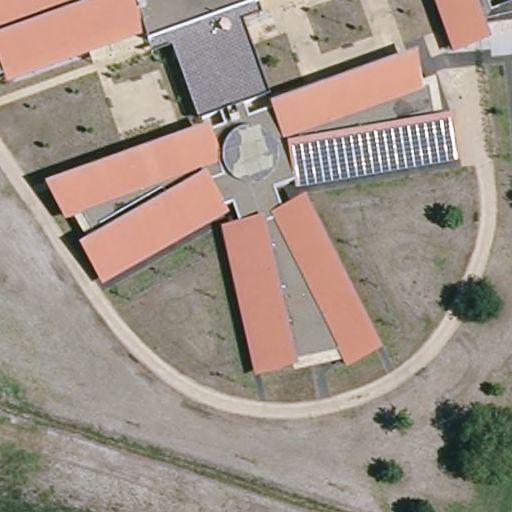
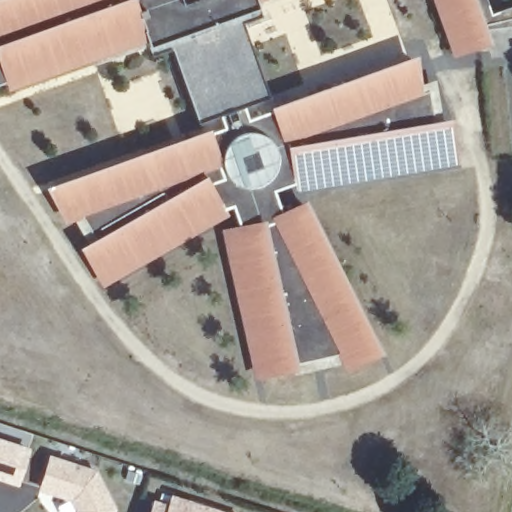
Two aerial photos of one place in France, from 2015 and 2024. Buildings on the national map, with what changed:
unchanged [(0,82),(0,0),(255,0),(257,5),(260,15),(241,24),(268,95),(241,104),(248,120),(270,111),(411,59),(420,82),(435,77),(442,120),(450,119),(457,166),(298,189),(296,183),(274,192),(280,210),(302,197),(381,352),(344,372),(340,363),(293,373),(255,380),(221,231),(241,226),(231,205),(224,207),(228,217),(101,287),(78,249),(87,244),(71,219),(64,222),(47,186),(210,130),(224,126),(216,115),(197,121),(172,50),(154,58),(145,41),(6,89),(4,81),(0,82)]
unchanged [(489,41),(450,55),(430,0),(487,0),(491,12),(512,4),(512,37),(489,41)]
new [(19,486),(0,480),(0,434),(31,445),(19,486)]
new [(76,511),(71,500),(36,490),(49,453),(96,469),(117,508),(115,512),(76,512),(76,511)]
new [(166,502),(170,493),(228,512),(149,512),(154,498),(166,502)]

